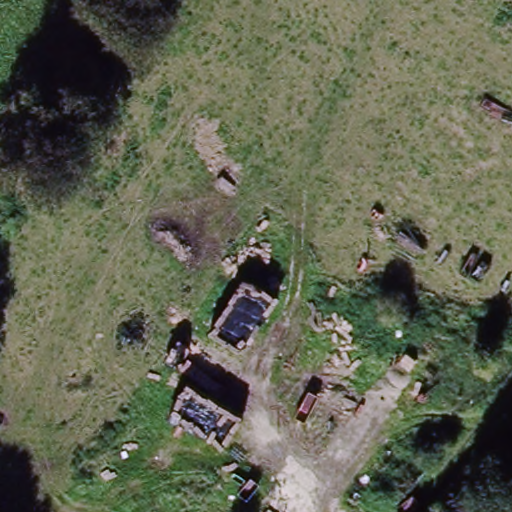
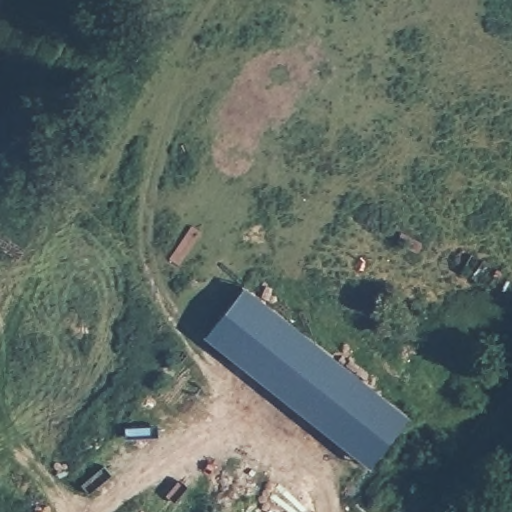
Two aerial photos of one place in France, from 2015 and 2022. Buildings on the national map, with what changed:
new [(248,289),(413,422),(371,473),(207,340),(248,289)]

